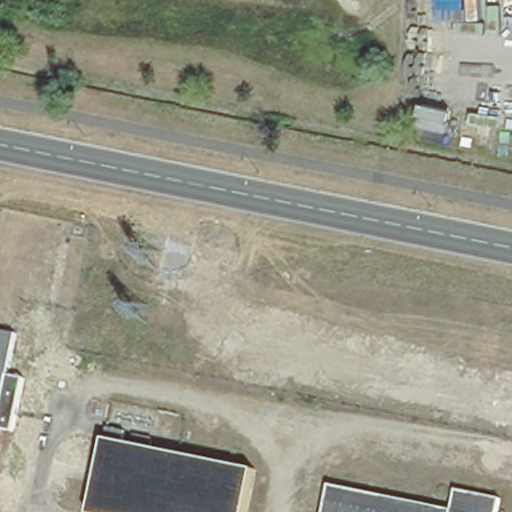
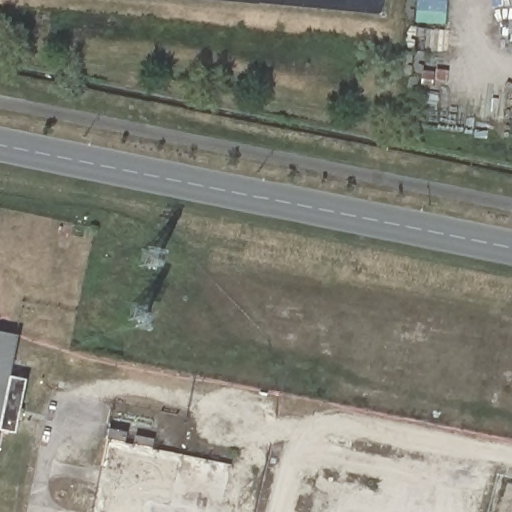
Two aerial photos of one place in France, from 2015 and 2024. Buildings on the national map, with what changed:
unchanged [(10,335),(0,385),(0,333),(10,335)]
demolished [(254,472),(246,512),(92,512),(107,440),(254,472)]
demolished [(452,484),(497,493),(493,510),(503,512),(323,512),(329,476),(449,500),(452,484)]

